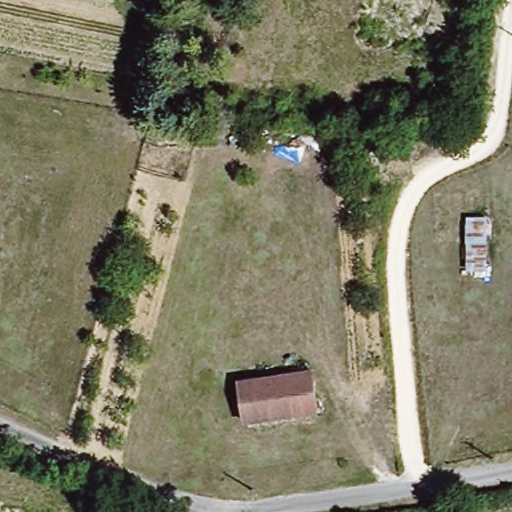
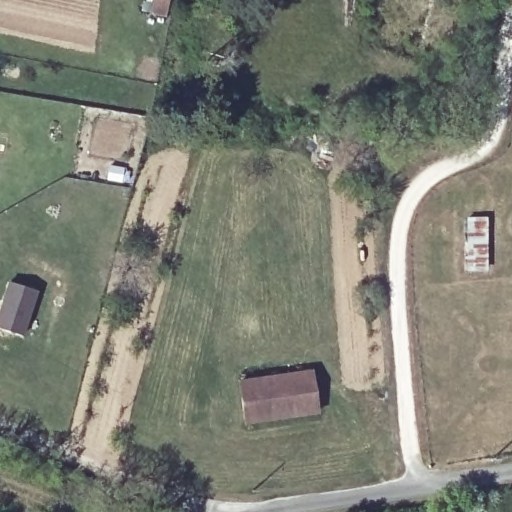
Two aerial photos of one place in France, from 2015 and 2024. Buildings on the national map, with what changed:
new [(22,335),(0,327),(0,304),(7,282),(37,291),(22,335)]
unchanged [(245,422),(240,380),(307,372),(313,413),(245,422)]

